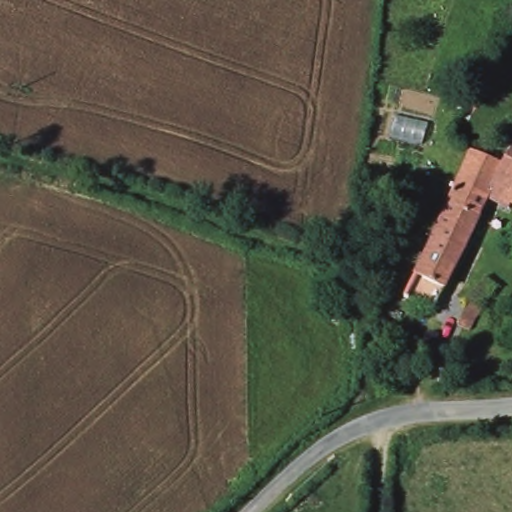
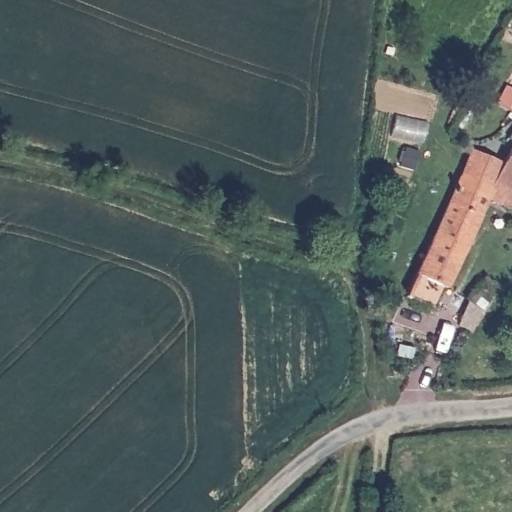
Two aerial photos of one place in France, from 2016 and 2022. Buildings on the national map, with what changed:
unchanged [(512,107),(512,115),(509,113),(512,107)]
unchanged [(463,210),(456,206),(451,204),(445,201),(443,201),(455,175),(456,174),(466,147),(500,161),(512,139),(512,213),(495,207),(486,222),(485,221),(474,214),(472,213),(468,212),(465,210),(463,210)]
unchanged [(445,201),(451,204),(456,206),(463,210),(465,210),(468,212),(472,213),(474,214),(428,307),(400,294),(443,201),(445,201)]
unchanged [(463,344),(462,345),(457,338),(460,334),(469,318),(485,287),(500,297),(463,344)]

